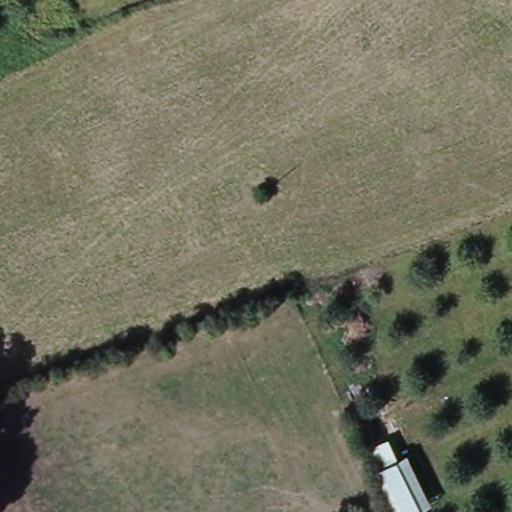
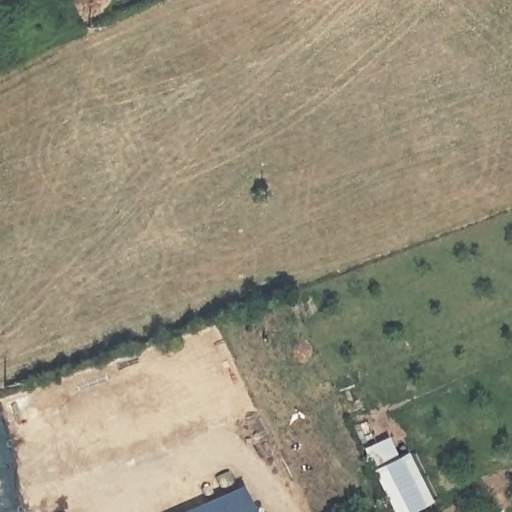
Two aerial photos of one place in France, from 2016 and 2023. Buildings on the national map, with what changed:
unchanged [(398,456),(411,450),(435,500),(417,512),(396,512),(366,448),(390,436),(398,456)]
new [(255,512),(187,512),(244,487),(255,512)]

